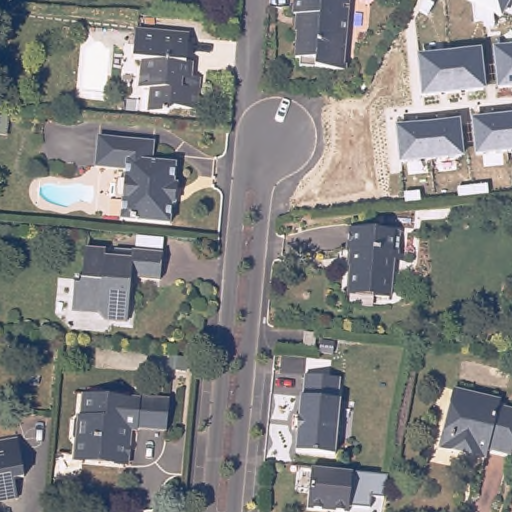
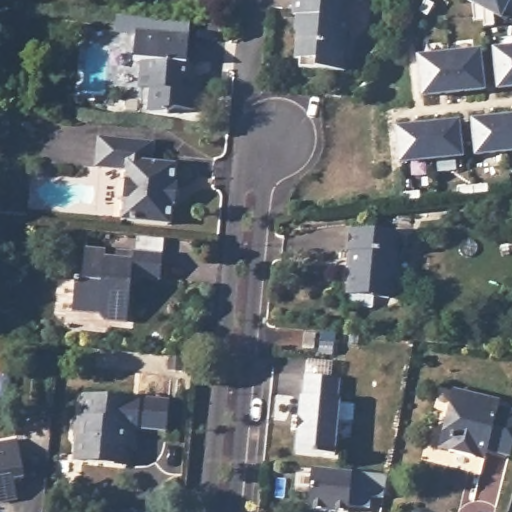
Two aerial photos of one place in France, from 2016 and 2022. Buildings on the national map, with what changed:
unchanged [(347,67),(346,72),(337,71),(298,67),(298,57),(294,57),(296,32),(298,32),(300,15),(292,15),(293,0),(349,0),(344,43),(343,67),(347,67)]
unchanged [(501,20),(463,0),(512,0),(501,20)]
unchanged [(0,18),(0,3),(2,4),(0,18)]
unchanged [(133,59),(135,30),(188,35),(186,61),(190,62),(189,76),(199,78),(196,108),(175,106),(169,113),(148,111),(149,89),(139,87),(140,60),(133,59)]
unchanged [(497,91),(492,49),(512,47),(512,89),(497,91)]
unchanged [(482,50),(487,91),(421,97),(418,56),(482,50)]
unchanged [(512,115),(512,154),(475,158),(472,120),(512,115)]
unchanged [(459,121),(463,159),(399,165),(394,128),(459,121)]
unchanged [(94,167),(97,136),(151,142),(149,162),(173,165),(172,182),(174,184),(173,204),(169,204),(167,222),(116,217),(120,170),(94,167)]
unchanged [(347,247),(349,226),(398,232),(396,253),(391,252),(386,295),(369,294),(367,290),(347,288),(351,247),(347,247)]
unchanged [(117,253),(135,255),(165,258),(163,285),(143,282),(142,290),(134,290),(130,326),(110,325),(104,318),(74,315),(77,284),(83,284),(86,252),(107,254),(107,261),(116,262),(117,253)]
unchanged [(304,348),(304,335),(314,335),(314,348),(304,348)]
unchanged [(295,451),(299,398),(302,396),(304,375),(339,378),(338,399),(340,400),(339,419),(342,423),(340,432),(337,436),(335,455),(295,451)]
unchanged [(437,445),(456,387),(498,400),(497,406),(512,412),(512,433),(505,455),(484,450),(481,459),(437,445)]
unchanged [(76,439),(78,427),(81,425),(84,400),(135,405),(136,401),(169,405),(165,437),(133,435),(128,439),(125,466),(78,461),(79,443),(76,439)]
unchanged [(28,478),(19,480),(21,499),(0,502),(0,500),(0,445),(22,441),(28,478)]
unchanged [(310,469),(352,472),(349,512),(324,512),(308,510),(310,469)]

